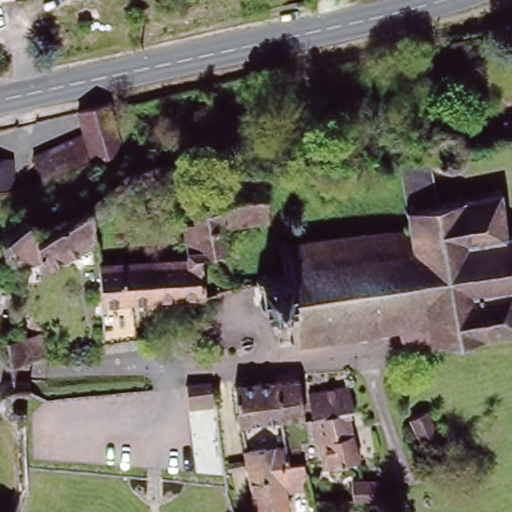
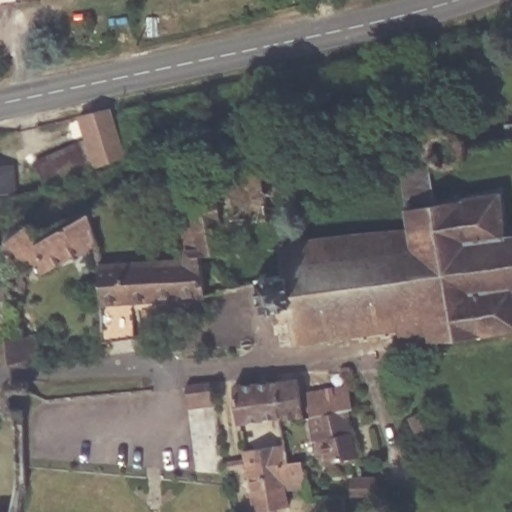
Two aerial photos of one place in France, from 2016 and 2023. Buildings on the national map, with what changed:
unchanged [(125,157),(47,191),(35,162),(86,140),(82,124),(77,125),(75,117),(112,108),(113,114),(125,157)]
unchanged [(258,277),(262,277),(261,272),(267,272),(267,275),(290,272),(289,253),(285,253),(285,248),(287,248),(287,244),(292,243),(292,247),(321,243),(412,230),(410,213),(406,213),(405,207),(408,207),(397,157),(422,153),(423,157),(426,162),(432,168),(438,202),(458,199),(457,193),(465,193),(465,197),(500,193),(499,187),(505,186),(505,191),(507,191),(512,233),(512,329),(490,332),(490,334),(480,335),(480,332),(437,339),(437,343),(405,347),(402,329),(388,331),(388,335),(382,335),(382,332),(372,333),(372,337),(366,337),(365,334),(338,337),(339,339),(333,340),(333,338),(302,341),(302,346),(298,347),(298,343),(295,343),(295,338),(297,338),(295,320),(279,322),(277,307),(272,308),(272,311),(266,311),(265,309),(262,309),(262,299),(265,299),(262,283),(259,283),(258,277)]
unchanged [(13,164),(15,187),(20,186),(21,193),(2,195),(0,195),(0,166),(13,164)]
unchanged [(232,251),(206,254),(207,258),(193,259),(192,248),(189,223),(199,222),(195,188),(215,186),(216,201),(226,201),(225,184),(268,178),(275,220),(230,226),(232,251)]
unchanged [(10,259),(7,256),(2,250),(0,247),(0,244),(0,236),(2,230),(7,226),(11,222),(17,221),(23,221),(28,223),(33,226),(38,231),(90,205),(97,243),(40,272),(35,260),(18,266),(10,259)]
unchanged [(159,261),(173,260),(193,259),(207,258),(207,263),(207,270),(217,269),(220,293),(162,298),(159,261)]
unchanged [(140,300),(142,335),(107,340),(100,264),(159,261),(162,298),(140,300)]
unchanged [(7,359),(5,353),(5,347),(5,341),(10,335),(15,332),(22,331),(26,331),(27,332),(28,335),(46,331),(50,355),(35,359),(36,366),(19,368),(15,367),(10,364),(7,359)]
unchanged [(275,382),(297,380),(305,414),(282,416),(241,421),(235,387),(275,382)]
unchanged [(185,385),(210,381),(215,405),(190,408),(185,385)]
unchanged [(357,409),(352,410),(315,416),(310,391),(352,383),(354,388),(357,409)]
unchanged [(416,414),(430,407),(440,427),(426,435),(416,414)]
unchanged [(360,458),(334,462),(328,437),(319,438),(315,416),(352,410),(360,458)]
unchanged [(287,483),(292,505),(260,511),(250,466),(250,462),(247,451),(287,444),(290,460),(303,458),(310,479),(287,483)]
unchanged [(350,478),(375,475),(377,493),(352,496),(350,478)]

